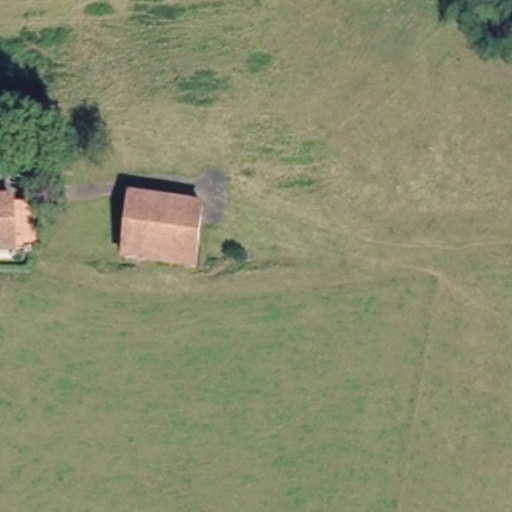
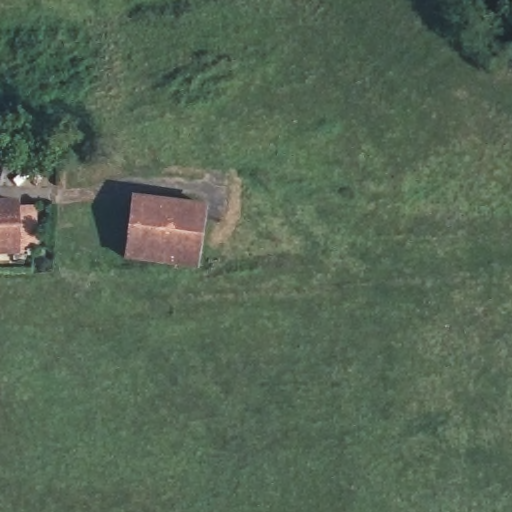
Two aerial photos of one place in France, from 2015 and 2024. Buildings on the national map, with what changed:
unchanged [(8,156),(33,156),(31,172),(8,174),(8,156)]
unchanged [(191,270),(126,261),(126,255),(129,238),(135,200),(202,210),(191,270)]
unchanged [(16,248),(0,249),(0,209),(20,210),(28,211),(31,248),(16,248)]

